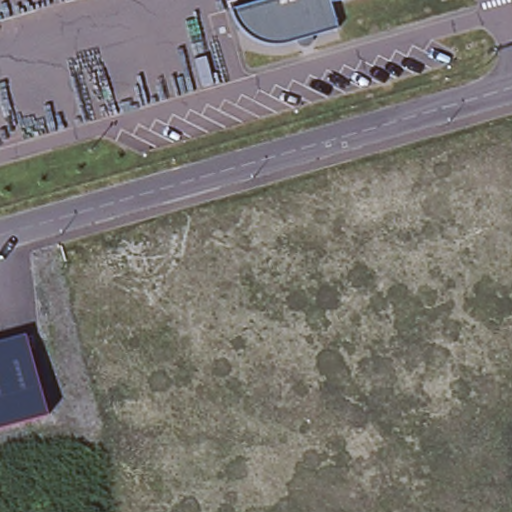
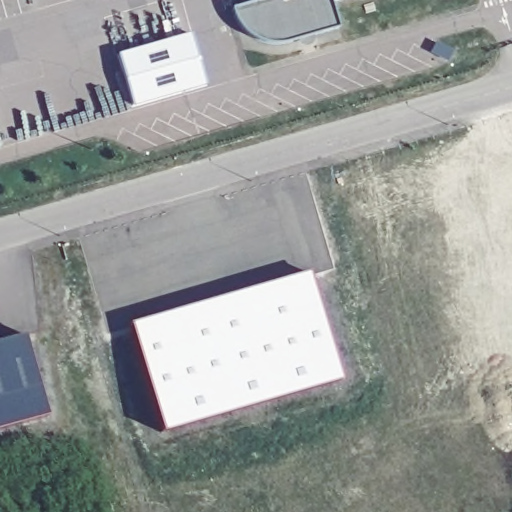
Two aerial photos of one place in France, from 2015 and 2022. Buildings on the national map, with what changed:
unchanged [(326,2),(333,28),(281,43),(273,44),(262,43),(251,40),(243,35),(237,29),(230,19),(226,8),(252,0),(331,0),(326,2)]
new [(340,381),(162,432),(130,323),(309,272),(340,381)]
unchanged [(46,413),(0,425),(0,337),(24,331),(46,413)]

